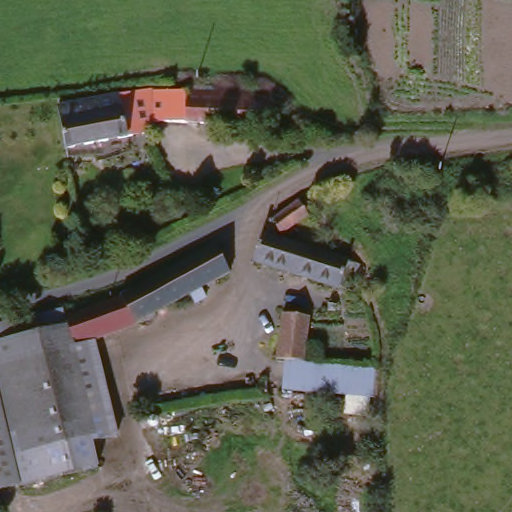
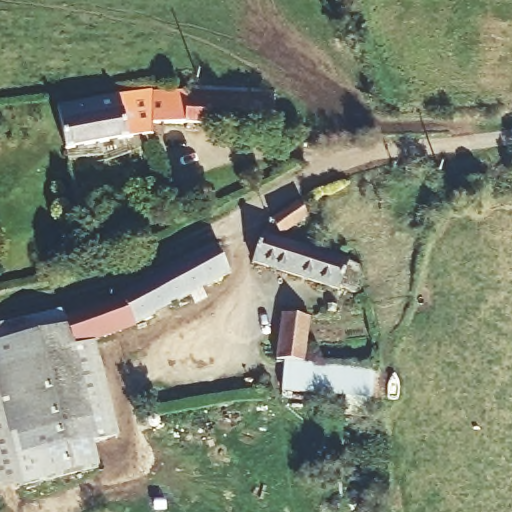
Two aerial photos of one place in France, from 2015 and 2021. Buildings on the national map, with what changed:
unchanged [(202,132),(201,119),(161,118),(163,134),(153,135),(128,136),(71,148),(63,111),(61,105),(123,94),(171,91),(273,92),(275,131),(202,132)]
unchanged [(298,206),(308,201),(318,219),(309,224),(284,237),(274,219),(298,206)]
unchanged [(357,290),(261,261),(271,234),(284,238),(284,237),(366,260),(357,290)]
unchanged [(131,329),(96,339),(72,347),(66,317),(116,305),(212,248),(228,272),(131,329)]
unchanged [(124,440),(98,444),(105,472),(24,490),(0,497),(0,338),(29,331),(28,316),(65,307),(66,317),(72,347),(96,339),(124,440)]
unchanged [(288,318),(315,321),(308,364),(291,362),(283,361),(284,350),(288,318)]
unchanged [(379,373),(376,401),(288,390),(291,362),(308,364),(309,364),(379,373)]

